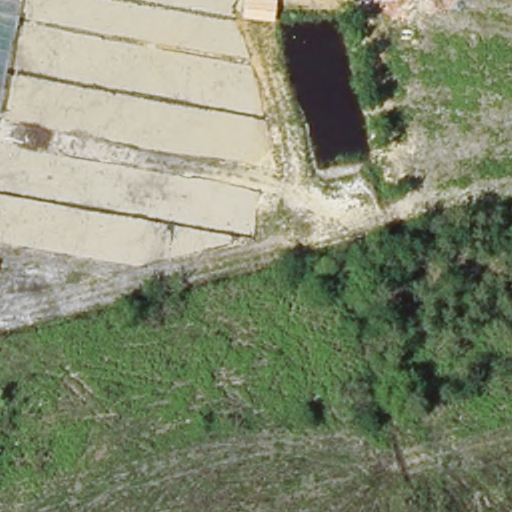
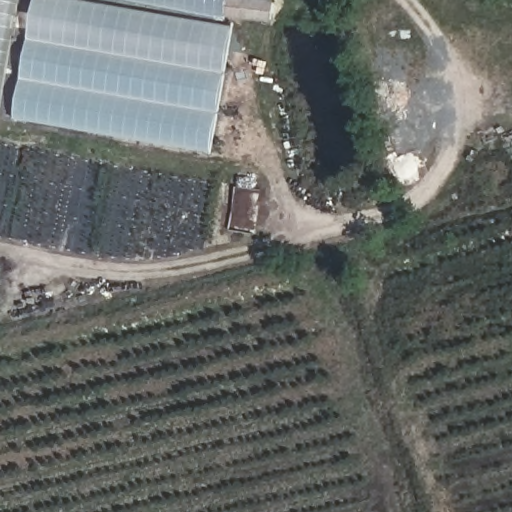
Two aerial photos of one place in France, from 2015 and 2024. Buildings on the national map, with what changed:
unchanged [(0,0),(18,0),(0,99),(0,0)]
new [(14,119),(36,0),(79,0),(234,27),(213,154),(14,119)]
new [(226,17),(127,0),(274,0),(273,22),(242,18),(226,17)]

